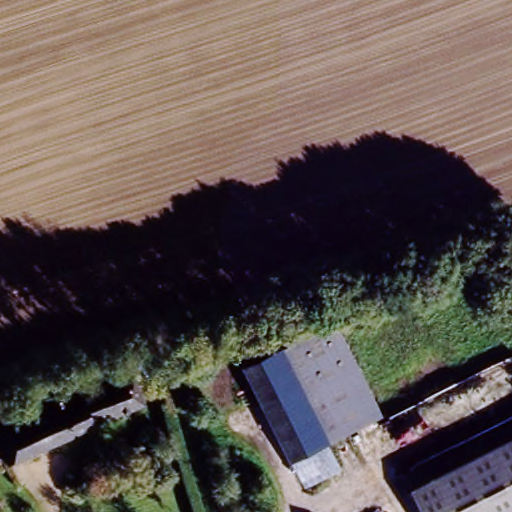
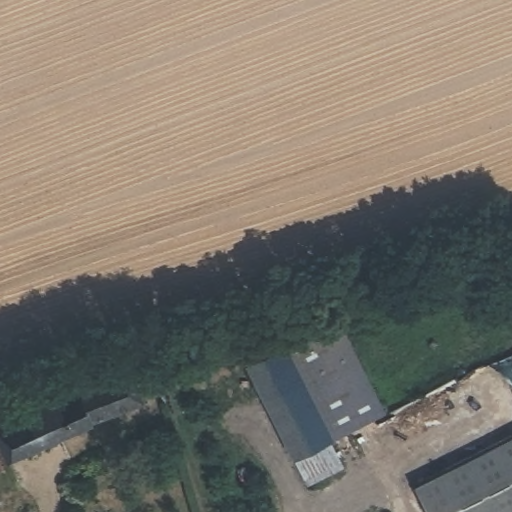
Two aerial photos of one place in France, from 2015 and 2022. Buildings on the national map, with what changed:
unchanged [(337,321),(385,411),(333,440),(285,351),(337,321)]
unchanged [(280,440),(289,435),(254,368),(285,351),(333,440),(302,458),(298,451),(290,456),(280,440)]
unchanged [(0,446),(0,427),(28,416),(22,401),(53,388),(59,403),(130,374),(144,407),(6,461),(0,446)]
unchanged [(512,439),(512,512),(425,512),(414,489),(512,439)]

